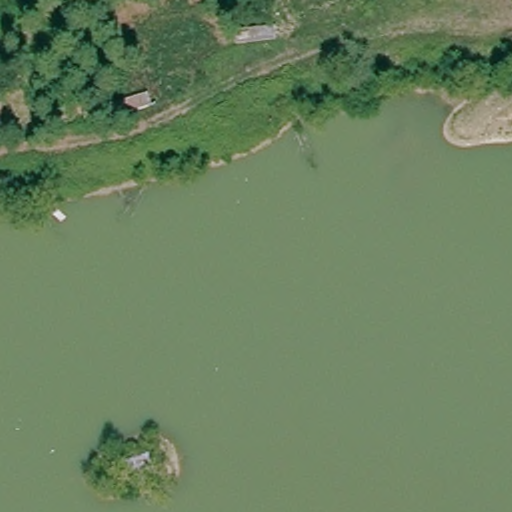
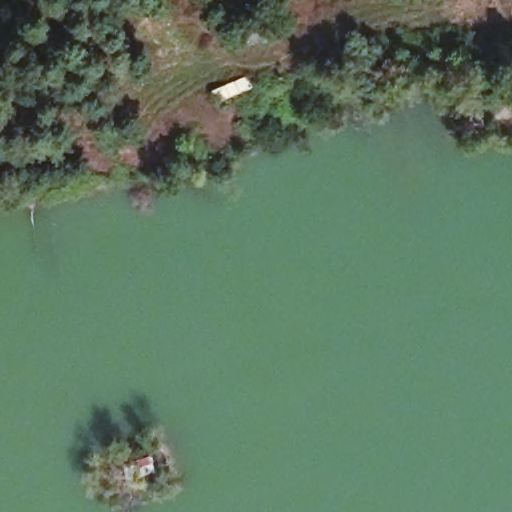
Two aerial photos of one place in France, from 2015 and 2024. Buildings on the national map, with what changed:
unchanged [(234,31),(275,27),(276,43),(235,47),(234,31)]
unchanged [(122,115),(119,105),(148,95),(151,106),(122,115)]

